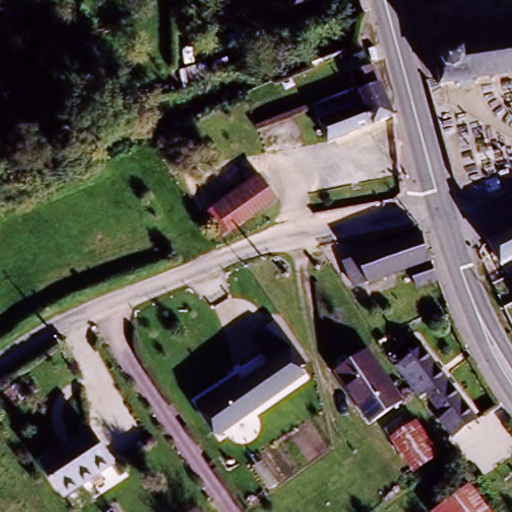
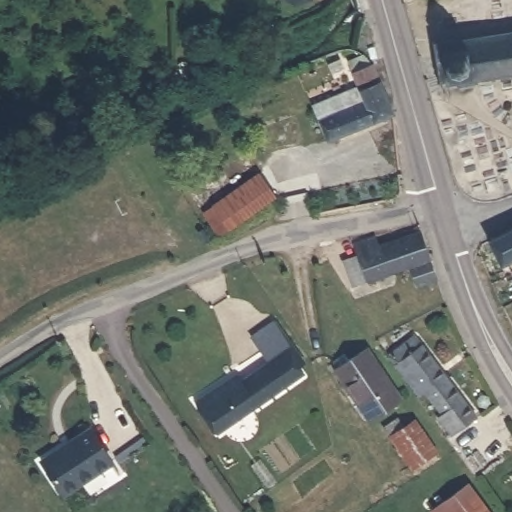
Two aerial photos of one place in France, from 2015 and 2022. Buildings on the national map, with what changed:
unchanged [(433,47),(512,31),(512,73),(443,85),(433,47)]
unchanged [(335,94),(359,88),(354,66),(378,63),(388,124),(322,137),(316,115),(313,100),(335,94)]
unchanged [(276,200),(216,228),(203,205),(266,175),(276,200)]
unchanged [(500,271),(484,248),(499,236),(512,229),(512,264),(500,271)]
unchanged [(389,242),(420,233),(437,284),(412,292),(406,272),(351,290),(340,258),(389,242)]
unchanged [(191,391),(234,361),(240,369),(261,354),(246,334),(270,316),(302,360),(213,422),(191,391)]
unchanged [(413,336),(491,435),(464,456),(447,435),(451,433),(419,384),(412,390),(386,357),(413,336)]
unchanged [(334,366),(363,347),(396,398),(367,417),(334,366)]
unchanged [(416,417),(438,451),(413,473),(387,439),(416,417)]
unchanged [(110,455),(65,490),(41,459),(85,424),(110,455)]
unchanged [(472,512),(423,512),(448,487),(472,512)]

